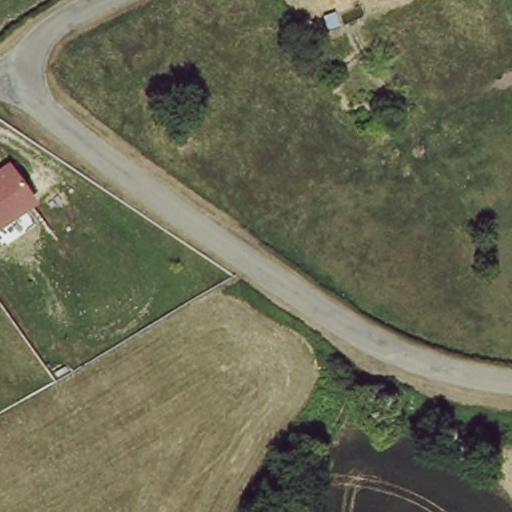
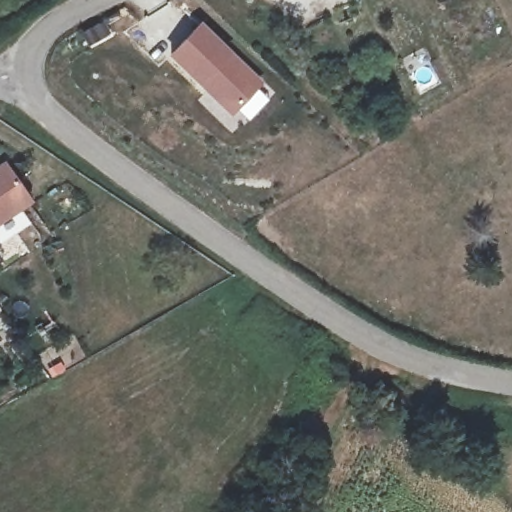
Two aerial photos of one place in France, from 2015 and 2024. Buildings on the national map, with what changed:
new [(168,54),(201,22),(262,81),(230,112),(168,54)]
unchanged [(0,225),(0,163),(7,159),(35,199),(0,225)]

